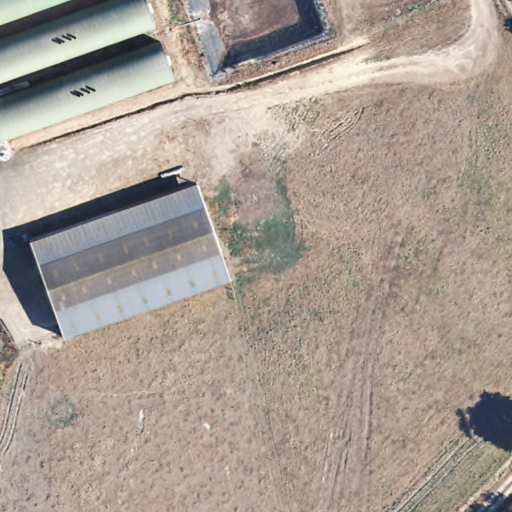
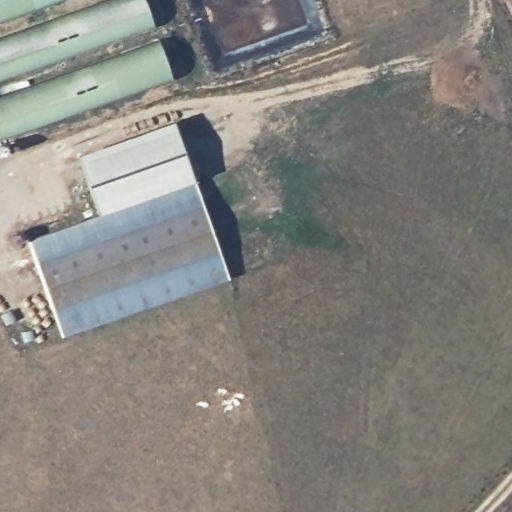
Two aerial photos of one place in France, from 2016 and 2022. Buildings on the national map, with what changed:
unchanged [(52,0),(0,19),(0,0),(52,0)]
unchanged [(109,0),(149,0),(157,29),(0,73),(0,31),(109,0)]
unchanged [(88,64),(162,43),(165,55),(172,83),(145,91),(0,131),(0,89),(88,64)]
new [(99,214),(78,155),(174,122),(196,181),(99,214)]
unchanged [(26,243),(192,191),(200,190),(207,220),(224,284),(53,337),(26,243)]

